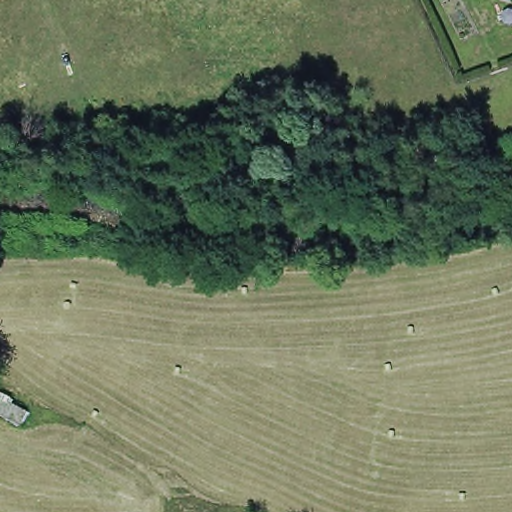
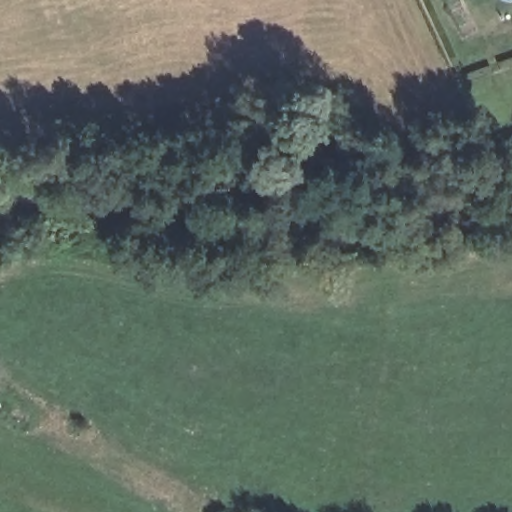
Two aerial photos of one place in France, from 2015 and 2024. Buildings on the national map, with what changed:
[]

